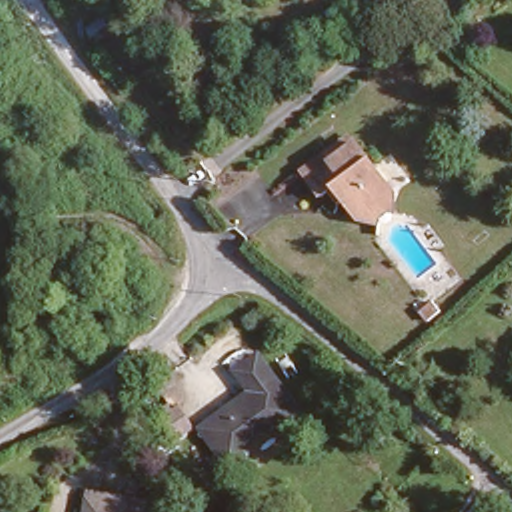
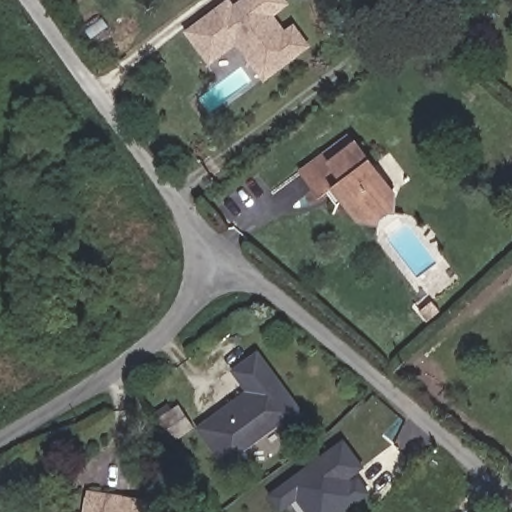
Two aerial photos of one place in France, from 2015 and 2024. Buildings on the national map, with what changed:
new [(275,16),(285,29),(293,23),(310,47),(264,82),(236,46),(210,65),(185,30),(226,0),(232,0),(234,4),(239,0),(287,0),(290,4),(275,16)]
unchanged [(385,215),(364,209),(352,191),(343,196),(335,185),(330,188),(310,160),(333,145),(340,153),(366,136),(400,185),(401,204),(385,215)]
unchanged [(295,418),(277,431),(272,425),(236,452),(240,458),(222,472),(193,432),(243,395),(229,376),(251,360),(295,418)]
new [(176,409),(191,432),(170,445),(156,423),(176,409)]
new [(279,512),(268,495),(343,437),(365,467),(357,472),(370,494),(345,512),(305,512),(297,501),(279,512)]
unchanged [(120,500),(134,503),(139,499),(147,512),(80,512),(85,488),(121,495),(120,500)]

